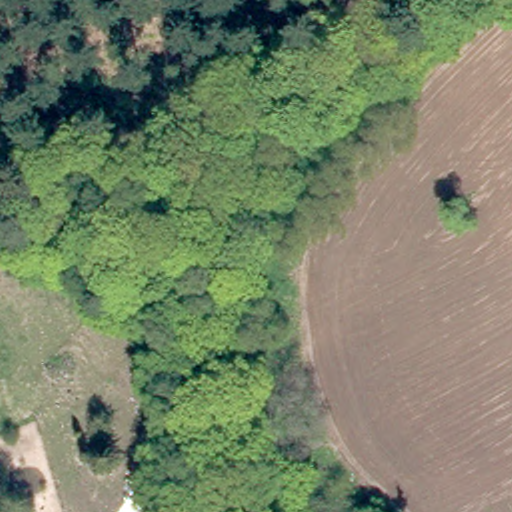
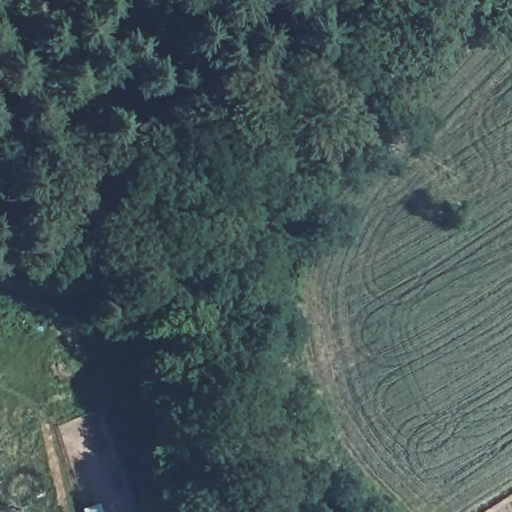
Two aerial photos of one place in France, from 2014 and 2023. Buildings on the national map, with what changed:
unchanged [(467,24),(503,2),(512,17),(512,21),(478,41),(467,24)]

